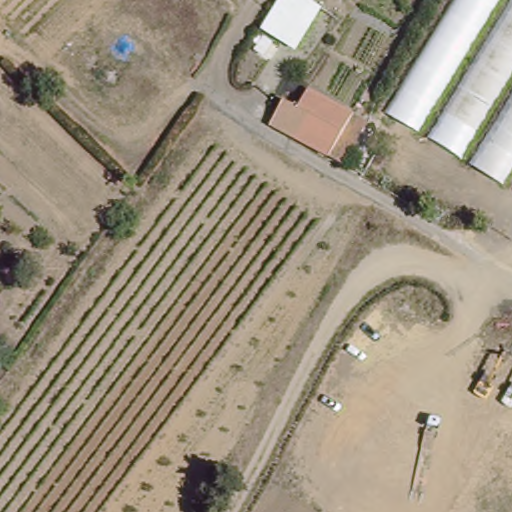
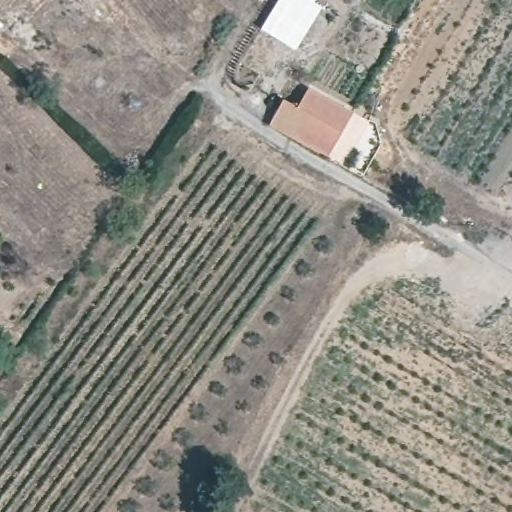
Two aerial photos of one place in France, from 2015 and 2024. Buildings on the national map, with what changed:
unchanged [(328,0),(297,49),(260,24),(277,0),(328,0)]
demolished [(512,0),(512,165),(503,178),(389,108),(454,0),(512,0)]
unchanged [(277,101),(294,108),(304,89),(361,122),(337,165),(322,156),(265,125),(277,101)]

